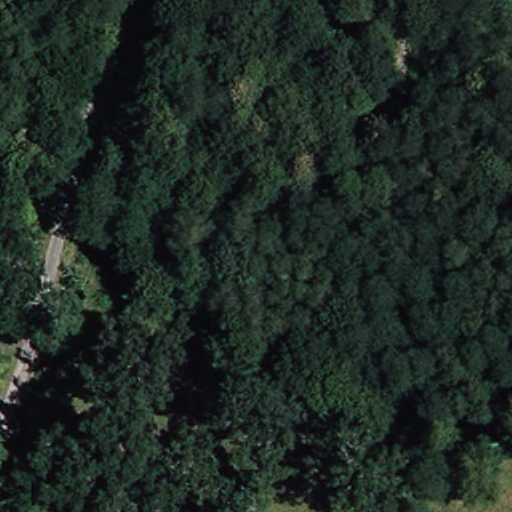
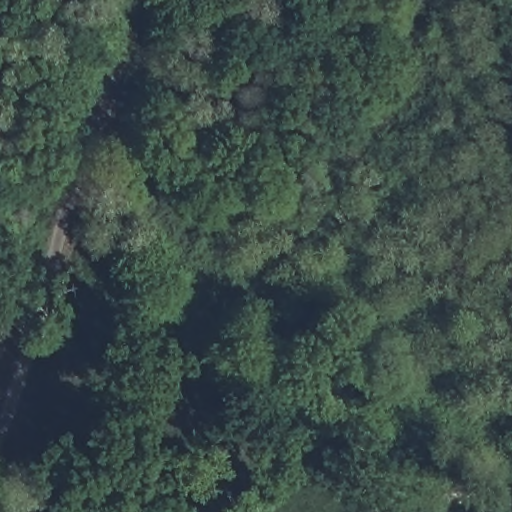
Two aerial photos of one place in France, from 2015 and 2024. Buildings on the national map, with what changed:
[]

